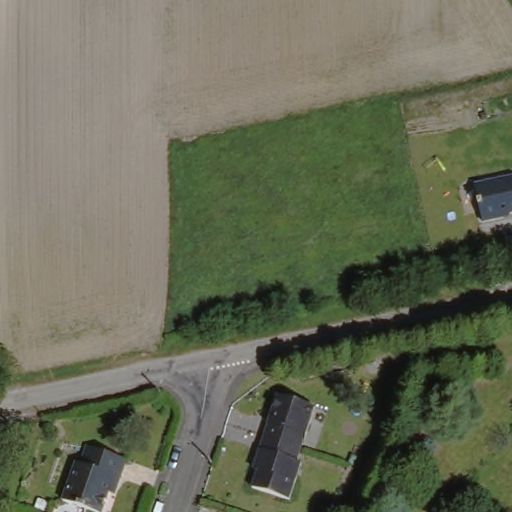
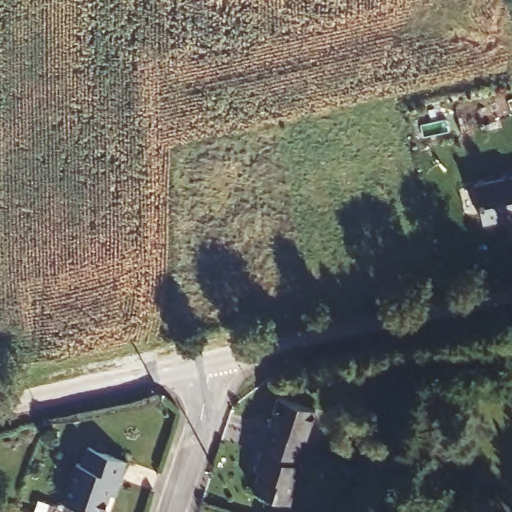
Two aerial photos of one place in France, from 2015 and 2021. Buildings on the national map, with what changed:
unchanged [(512,177),(512,215),(510,215),(509,219),(483,224),(475,185),(512,177)]
unchanged [(251,495),(256,480),(258,475),(252,472),(262,440),(276,400),(315,413),(302,454),(297,467),(302,469),(294,492),(290,507),(251,495)]
unchanged [(118,480),(113,479),(103,512),(90,512),(62,503),(73,465),(79,467),(84,450),(123,462),(118,480)]

